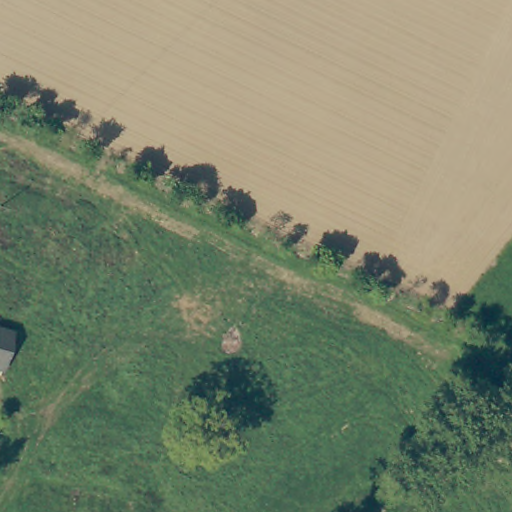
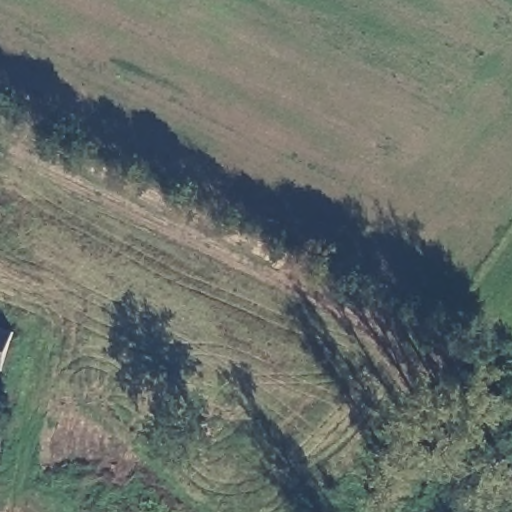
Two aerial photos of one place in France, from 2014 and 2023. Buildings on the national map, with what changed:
unchanged [(2,370),(0,369),(0,328),(14,331),(2,370)]

